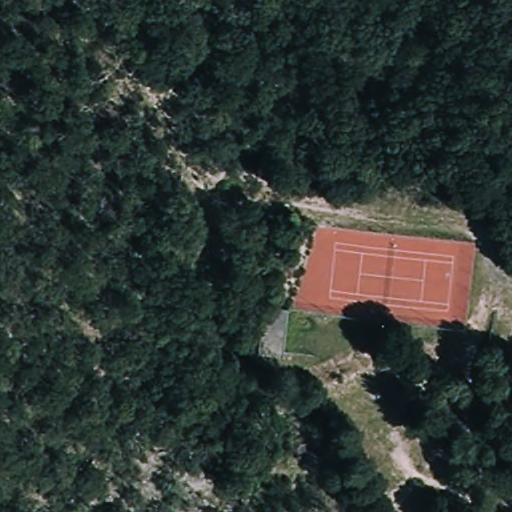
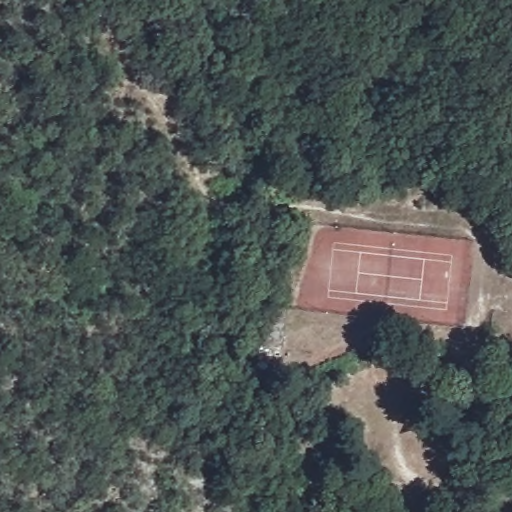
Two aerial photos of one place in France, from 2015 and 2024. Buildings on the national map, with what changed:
unchanged [(258,352),(264,305),(288,307),(283,354),(258,352)]

